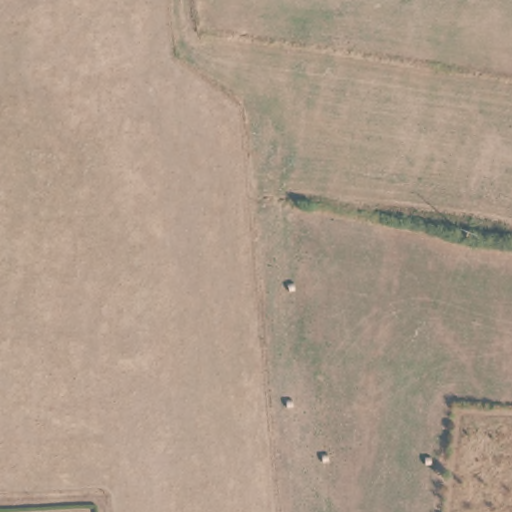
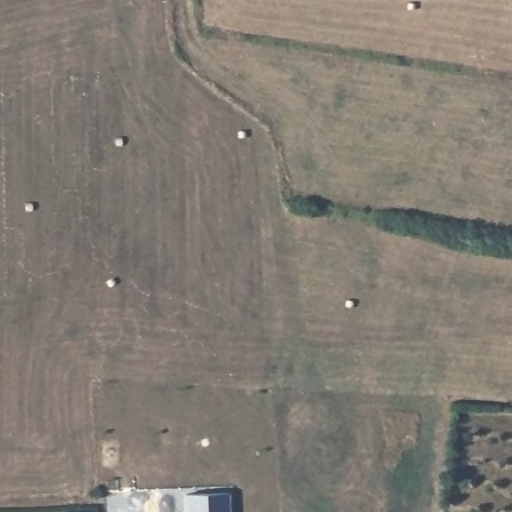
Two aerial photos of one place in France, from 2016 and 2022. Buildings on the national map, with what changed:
new [(183,493),(230,490),(231,512),(184,512),(183,493)]

